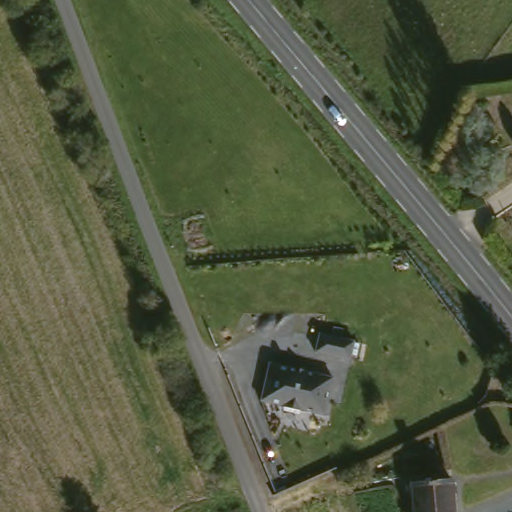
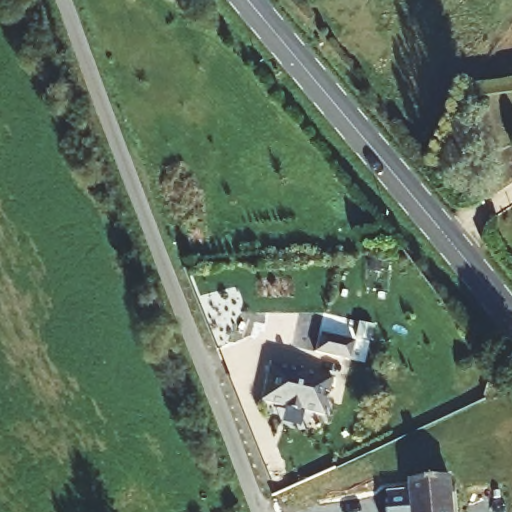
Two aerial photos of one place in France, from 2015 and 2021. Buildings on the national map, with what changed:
unchanged [(315,325),(351,332),(348,351),(311,345),(315,325)]
unchanged [(325,371),(319,410),(255,398),(261,360),(325,371)]
unchanged [(413,512),(411,488),(450,484),(453,512),(413,512)]

